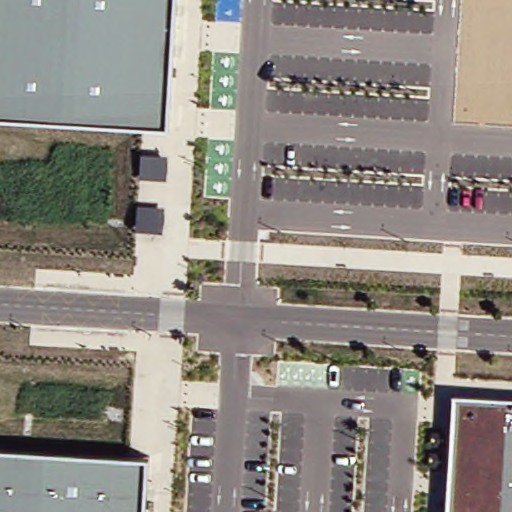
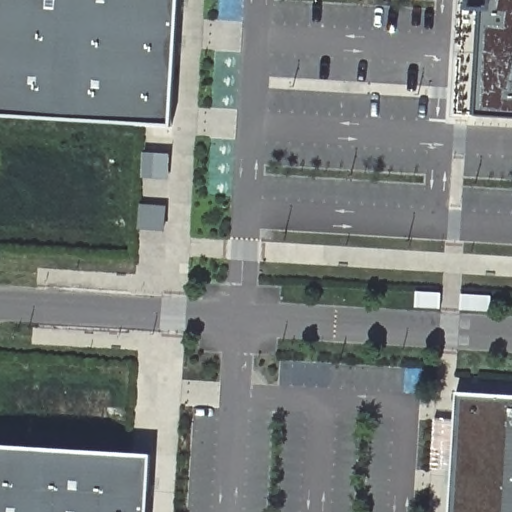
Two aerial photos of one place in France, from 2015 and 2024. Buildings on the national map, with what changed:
unchanged [(168,125),(0,116),(0,0),(176,0),(168,125)]
new [(483,13),(491,14),(492,0),(512,0),(512,122),(476,120),(483,13)]
unchanged [(512,397),(512,512),(448,512),(455,394),(512,397)]
unchanged [(146,512),(0,512),(0,447),(149,457),(146,512)]

